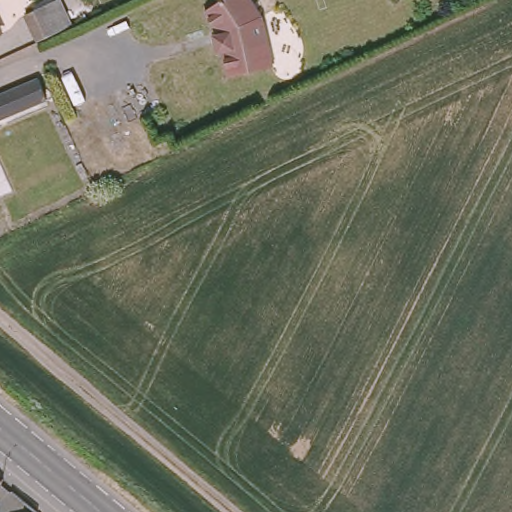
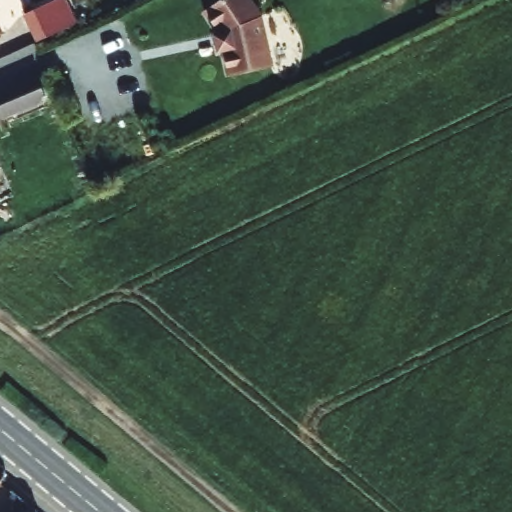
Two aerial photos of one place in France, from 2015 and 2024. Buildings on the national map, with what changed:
unchanged [(38,38),(25,9),(45,0),(62,0),(72,22),(38,38)]
unchanged [(275,70),(232,81),(226,55),(218,56),(215,40),(221,38),(205,17),(225,0),(249,0),(262,17),(275,70)]
unchanged [(0,31),(0,29),(1,31),(0,31)]
unchanged [(52,101),(0,122),(0,97),(43,80),(52,101)]

